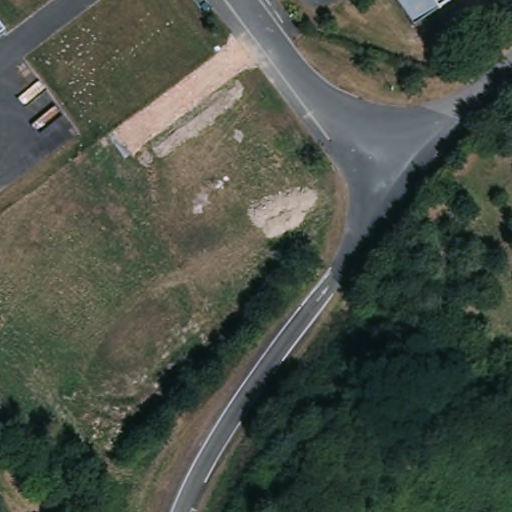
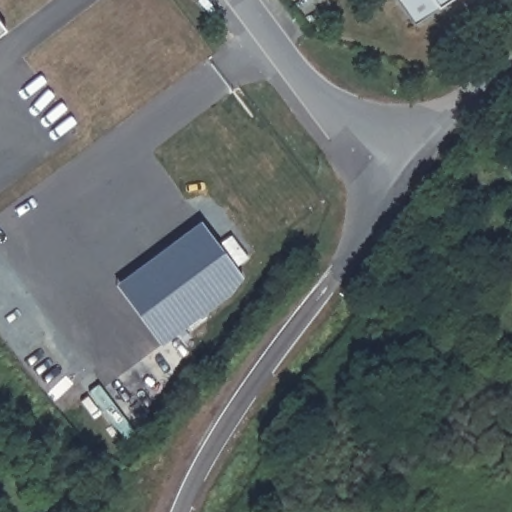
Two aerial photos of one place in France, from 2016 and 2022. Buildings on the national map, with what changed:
unchanged [(402,0),(462,0),(422,28),(402,0)]
unchanged [(12,27),(0,36),(0,14),(12,27)]
new [(202,222),(243,277),(229,296),(178,333),(133,273),(202,222)]
new [(133,273),(178,333),(162,345),(117,285),(133,273)]

